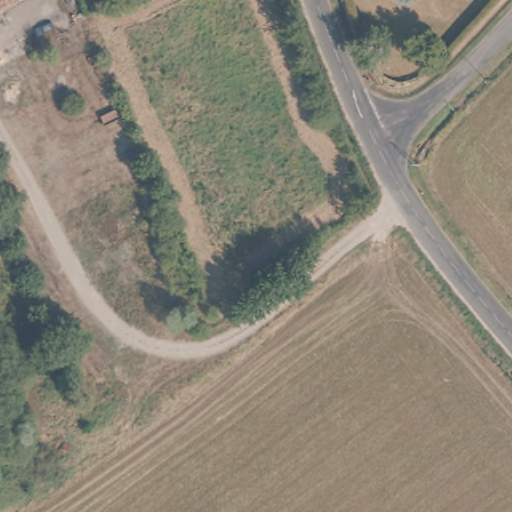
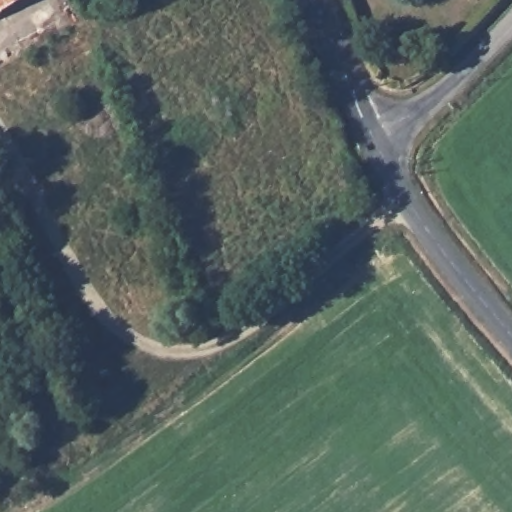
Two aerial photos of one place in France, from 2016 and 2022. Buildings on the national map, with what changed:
unchanged [(0,16),(0,0),(26,0),(0,16)]

